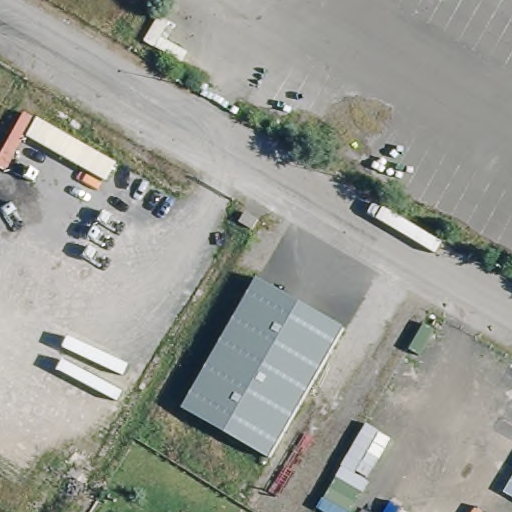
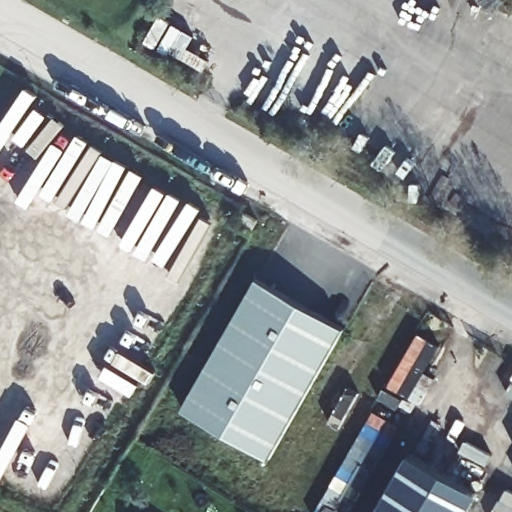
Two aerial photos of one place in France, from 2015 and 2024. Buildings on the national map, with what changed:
unchanged [(183,409),(258,278),(346,329),(271,460),(183,409)]
new [(404,464),(439,484),(445,475),(480,495),(470,512),(376,512),(404,464)]

